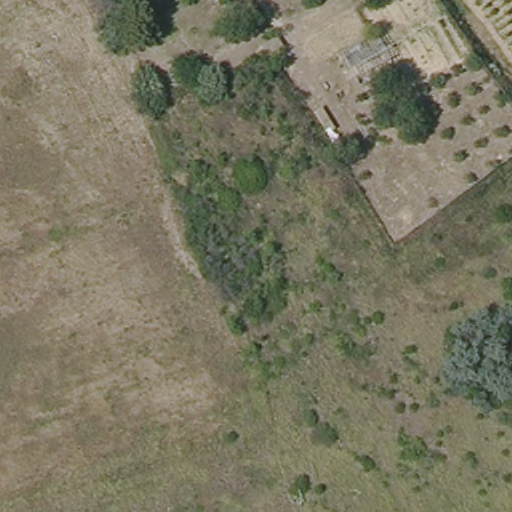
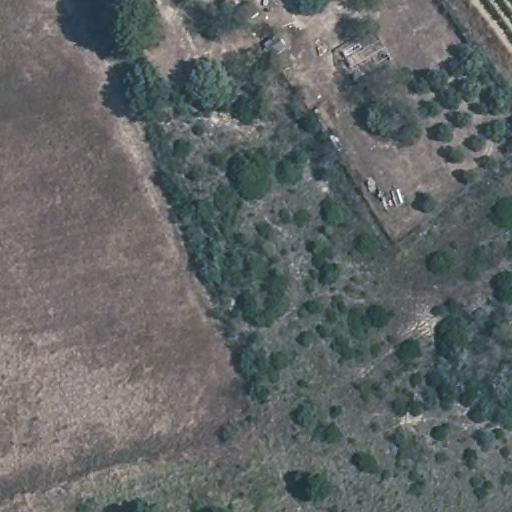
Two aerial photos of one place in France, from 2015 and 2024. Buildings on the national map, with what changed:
unchanged [(259,14),(247,23),(239,11),(251,3),(259,14)]

